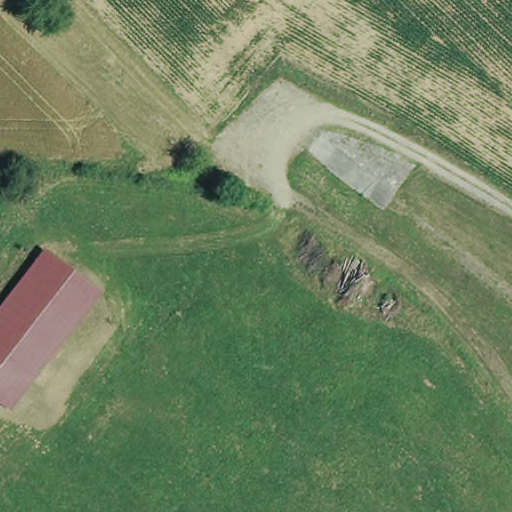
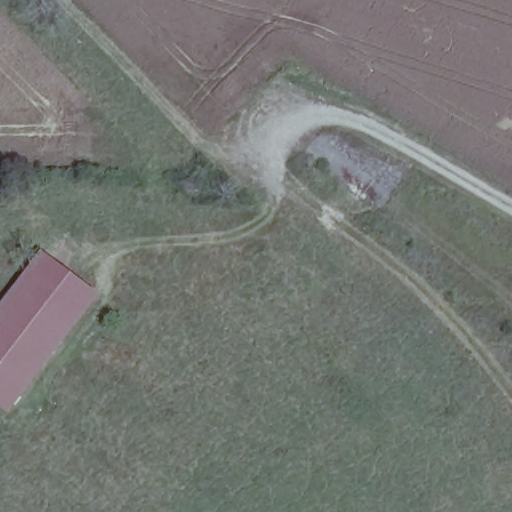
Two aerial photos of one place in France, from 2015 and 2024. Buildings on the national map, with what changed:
unchanged [(0,407),(0,303),(42,250),(105,298),(10,415),(0,407)]

